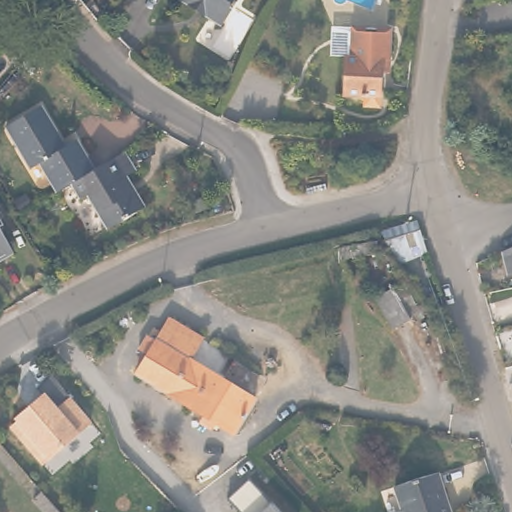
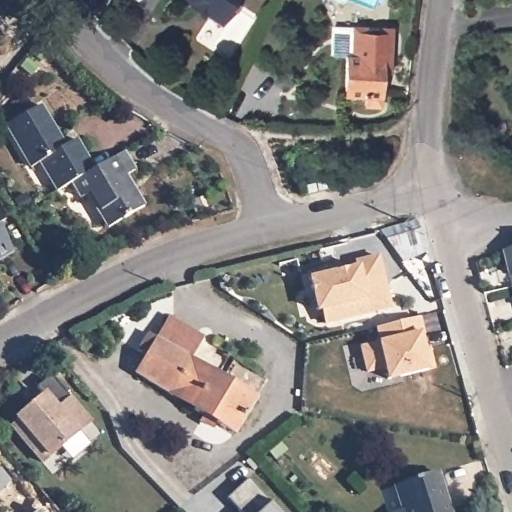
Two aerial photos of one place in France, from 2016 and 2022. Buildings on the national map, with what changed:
unchanged [(207,11),(205,14),(188,4),(190,1),(187,0),(236,0),(223,21),(221,20),(207,11)]
unchanged [(352,25),(389,27),(387,58),(386,69),(379,69),(377,104),(362,103),(363,93),(342,92),(344,54),(350,54),(352,25)]
unchanged [(55,189),(32,149),(25,153),(5,120),(41,100),(64,141),(76,134),(94,166),(70,180),(55,189)]
unchanged [(94,166),(126,148),(136,165),(127,171),(144,202),(106,224),(86,190),(78,195),(70,180),(94,166)]
unchanged [(6,225),(2,228),(16,252),(0,261),(0,215),(6,225)]
unchanged [(423,253),(400,261),(378,230),(383,230),(413,222),(423,253)]
demolished [(378,251),(351,256),(349,246),(376,241),(378,251)]
unchanged [(504,257),(512,253),(512,278),(509,278),(504,257)]
new [(323,323),(321,311),(315,312),(309,277),(309,271),(340,263),(341,270),(354,267),(353,260),(380,254),(392,308),(323,323)]
demolished [(412,303),(416,301),(421,310),(412,315),(386,329),(383,322),(370,297),(400,281),(412,303)]
new [(359,345),(378,341),(376,327),(422,315),(435,369),(431,370),(387,380),(385,370),(366,374),(359,345)]
unchanged [(204,344),(191,365),(256,405),(237,438),(216,426),(212,432),(203,426),(207,420),(139,379),(149,362),(138,355),(148,339),(158,345),(171,325),(204,344)]
unchanged [(96,425),(49,468),(12,426),(19,420),(17,418),(29,407),(31,410),(45,398),(36,387),(50,375),(96,425)]
unchanged [(400,512),(393,492),(436,477),(449,512),(400,512)]
unchanged [(250,478),(280,512),(240,512),(229,499),(250,478)]
unchanged [(58,512),(47,512),(35,498),(43,491),(60,510),(58,512)]

